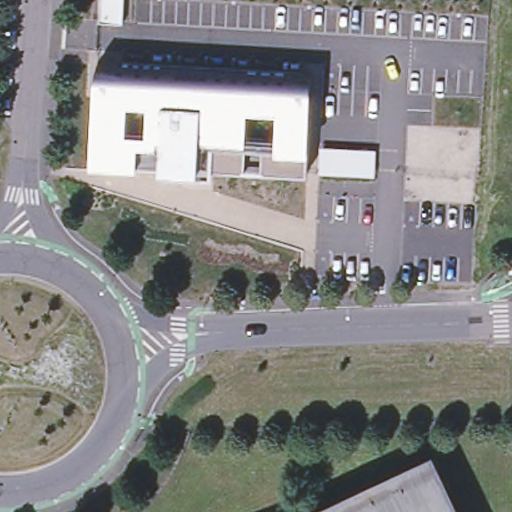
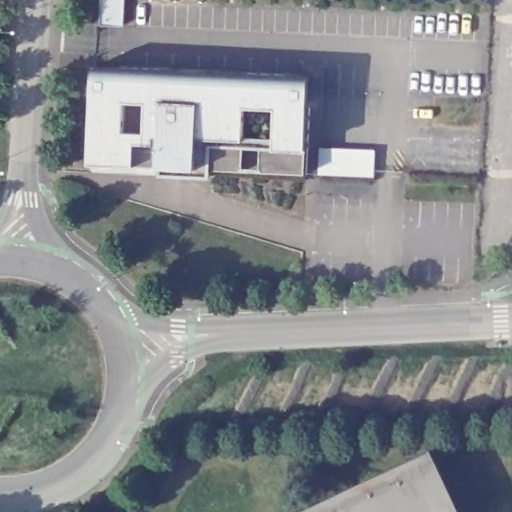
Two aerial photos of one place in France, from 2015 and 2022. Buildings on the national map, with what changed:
unchanged [(92,65),(310,74),(307,147),(308,174),(209,170),(209,179),(155,178),(154,167),(136,165),(89,164),(92,65)]
unchanged [(427,469),(447,512),(338,512),(427,469)]

